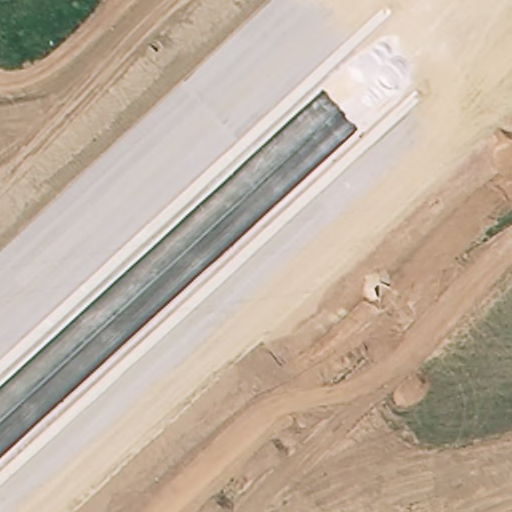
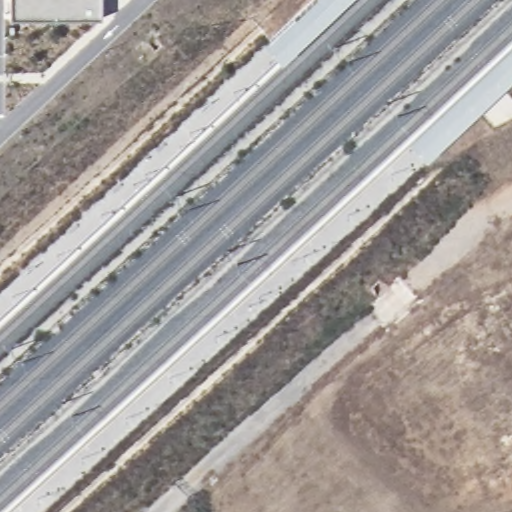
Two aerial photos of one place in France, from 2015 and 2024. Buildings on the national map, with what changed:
new [(9,17),(9,0),(100,0),(100,17),(9,17)]

